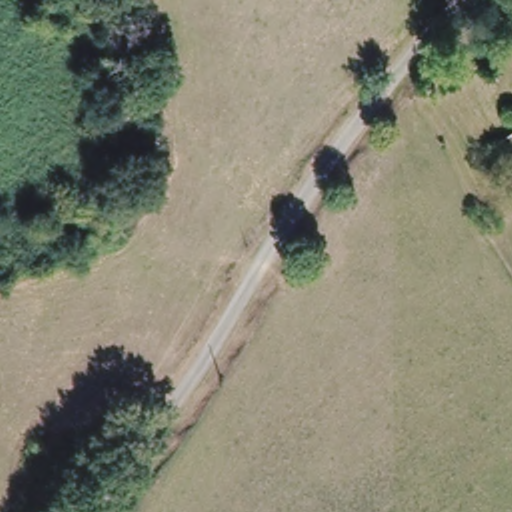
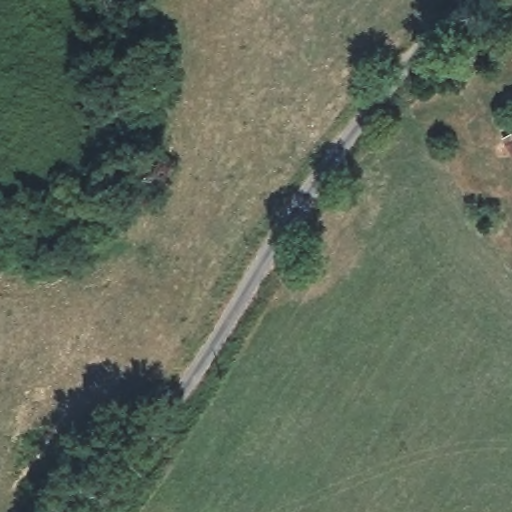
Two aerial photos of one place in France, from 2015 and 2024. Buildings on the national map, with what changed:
unchanged [(498,131),(512,125),(512,153),(510,154),(498,131)]

